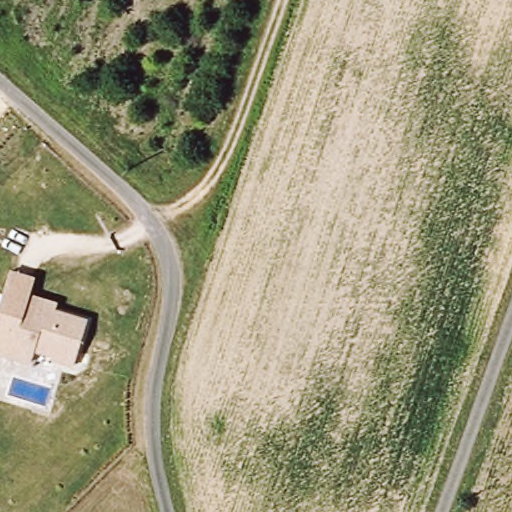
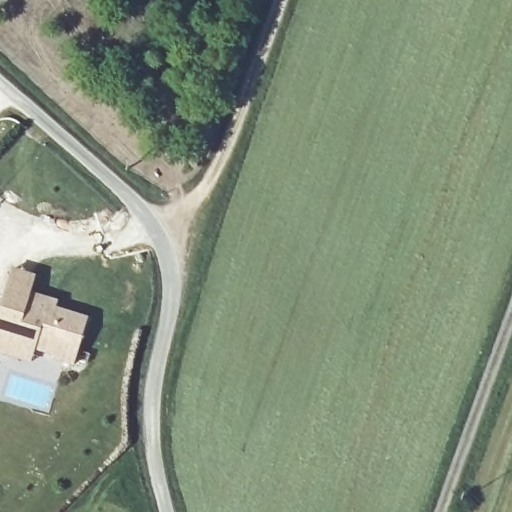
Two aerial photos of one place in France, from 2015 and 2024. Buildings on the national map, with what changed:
unchanged [(35,275),(32,292),(58,299),(55,307),(87,317),(75,365),(32,354),(29,364),(0,355),(0,291),(7,268),(35,275)]

